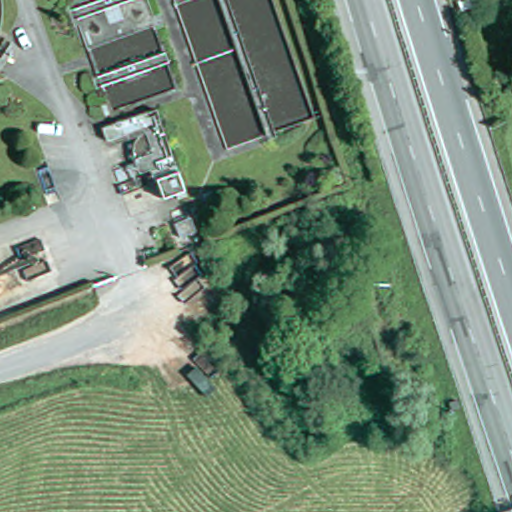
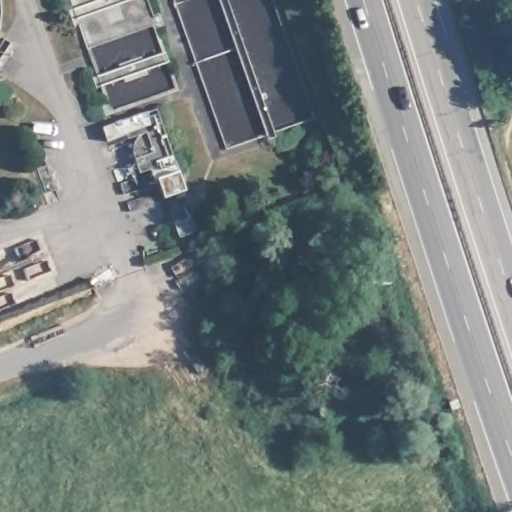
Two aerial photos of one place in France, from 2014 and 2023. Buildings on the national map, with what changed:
unchanged [(154,102),(183,185),(159,194),(148,164),(136,166),(124,130),(123,129),(104,134),(100,121),(133,109),(154,102)]
unchanged [(187,212),(192,226),(176,232),(171,218),(187,212)]

